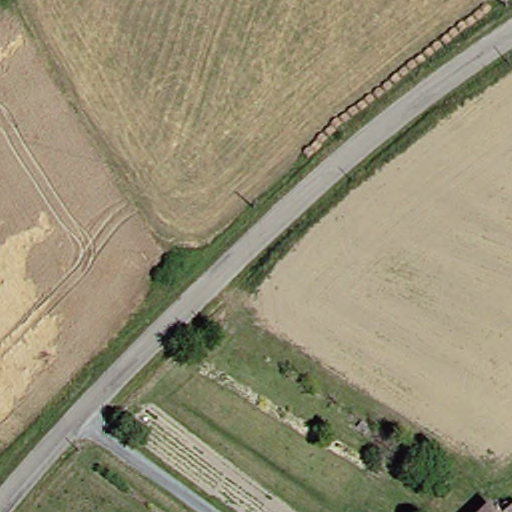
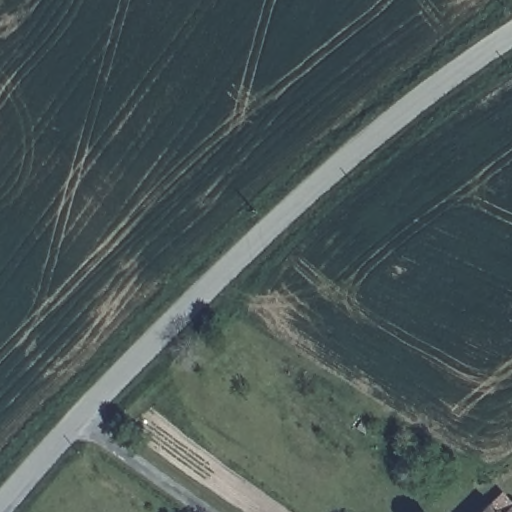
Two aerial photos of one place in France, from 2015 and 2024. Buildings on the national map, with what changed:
unchanged [(491,508),(495,512),(488,512),(491,508)]

